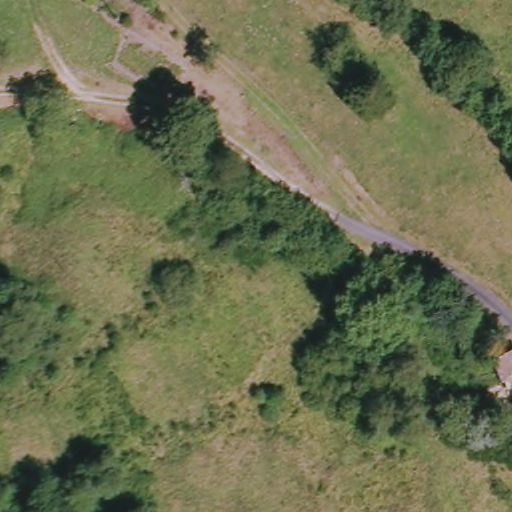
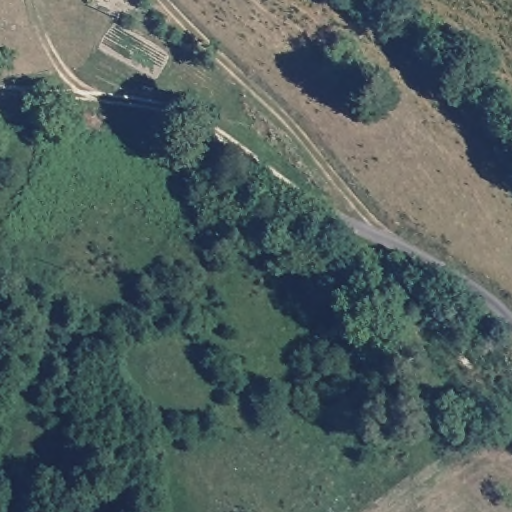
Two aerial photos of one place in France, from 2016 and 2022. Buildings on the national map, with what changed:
unchanged [(512,348),(512,405),(487,363),(512,348)]

